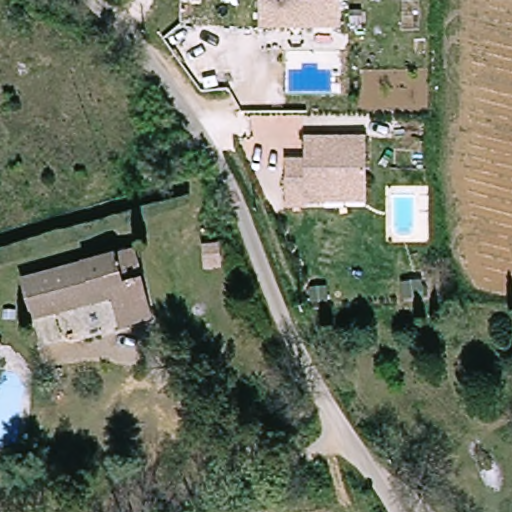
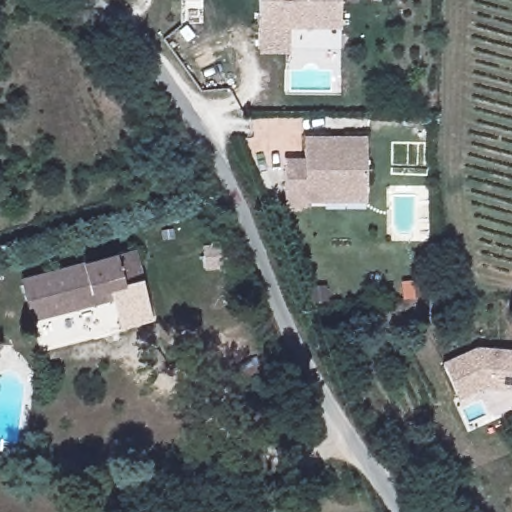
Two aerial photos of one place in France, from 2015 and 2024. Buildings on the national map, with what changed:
unchanged [(338,33),(257,32),(257,0),(338,0),(338,33)]
unchanged [(353,202),(327,202),(308,202),(308,207),(287,207),(288,167),(288,158),(307,158),(307,136),(351,137),(369,137),(369,187),(369,202),(353,202)]
unchanged [(137,245),(155,312),(119,322),(113,300),(39,321),(27,276),(137,245)]
new [(479,347),(512,351),(512,389),(484,386),(459,399),(446,364),(479,347)]

